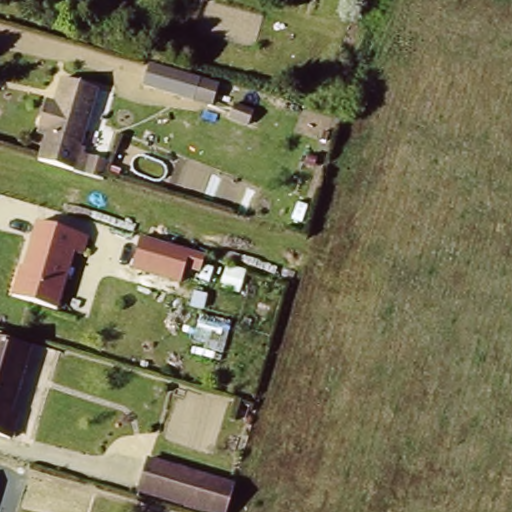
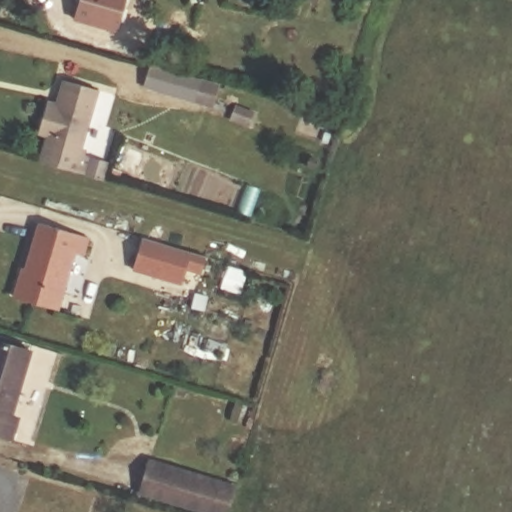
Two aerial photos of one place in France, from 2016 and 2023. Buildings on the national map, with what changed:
new [(121,0),(125,2),(114,34),(72,17),(78,0),(121,0)]
unchanged [(318,0),(322,0),(322,1),(318,0)]
unchanged [(222,83),(216,104),(150,86),(156,63),(222,83)]
unchanged [(82,152),(93,155),(89,176),(36,161),(43,141),(35,137),(47,100),(55,102),(62,74),(99,84),(82,152)]
unchanged [(98,241),(90,262),(78,257),(59,310),(12,293),(22,267),(30,270),(47,222),(98,241)]
unchanged [(205,254),(200,272),(187,270),(185,283),(137,269),(147,237),(205,254)]
unchanged [(0,342),(32,350),(15,414),(24,417),(18,441),(0,435),(0,342)]
unchanged [(240,486),(233,512),(203,512),(142,496),(150,459),(240,486)]

